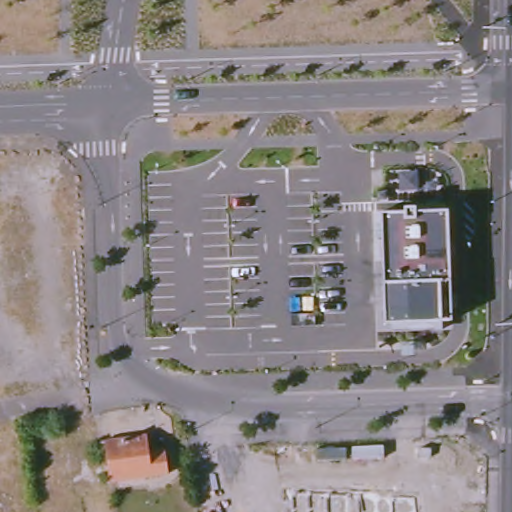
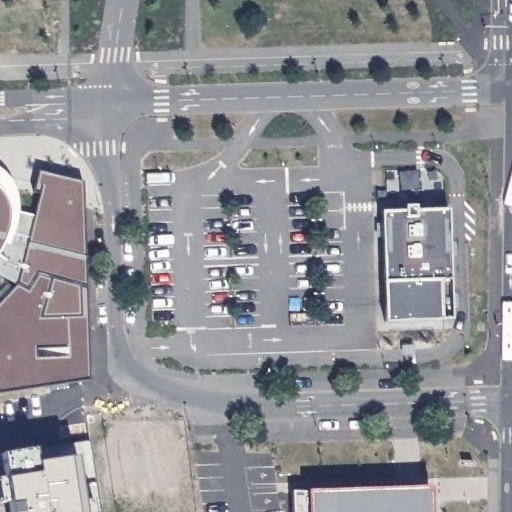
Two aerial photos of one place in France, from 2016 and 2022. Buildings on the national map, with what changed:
new [(0,394),(0,302),(17,285),(0,277),(0,190),(4,193),(11,211),(35,216),(40,194),(34,192),(40,170),(83,180),(90,380),(0,394)]
unchanged [(453,319),(386,322),(382,212),(448,209),(453,319)]
unchanged [(107,439),(147,434),(149,452),(165,450),(168,472),(113,480),(107,439)]
new [(295,489),(309,491),(310,489),(433,485),(434,512),(295,512),(295,489)]

